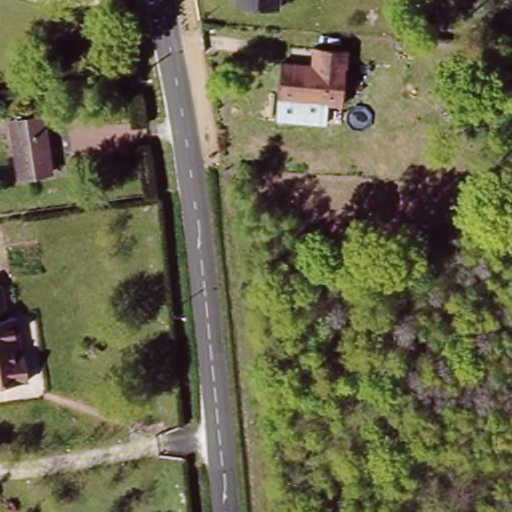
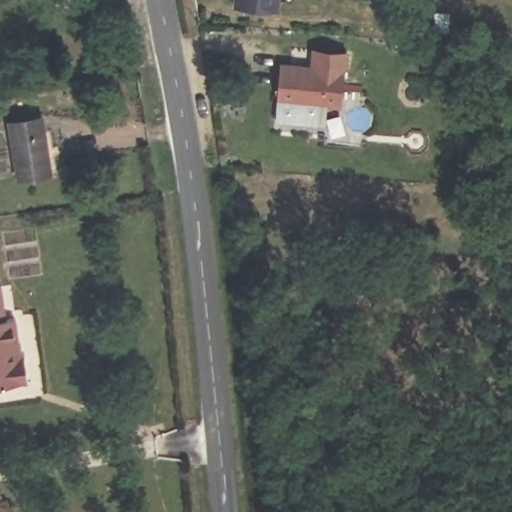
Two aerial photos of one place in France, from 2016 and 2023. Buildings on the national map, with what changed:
unchanged [(280,0),(279,8),(236,5),(236,0),(280,0)]
unchanged [(285,59),(314,60),(316,41),(351,44),(346,99),(329,98),(325,91),(307,91),(300,96),(281,95),(285,59)]
unchanged [(21,179),(14,135),(12,123),(40,118),(42,131),(49,174),(21,179)]
unchanged [(15,309),(26,308),(31,347),(35,346),(39,372),(0,377),(0,278),(12,277),(15,309)]

